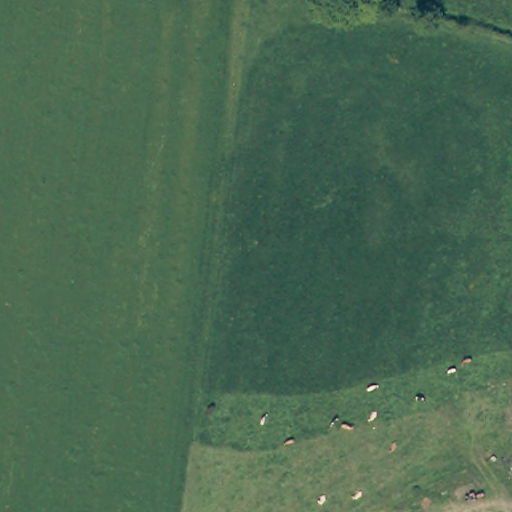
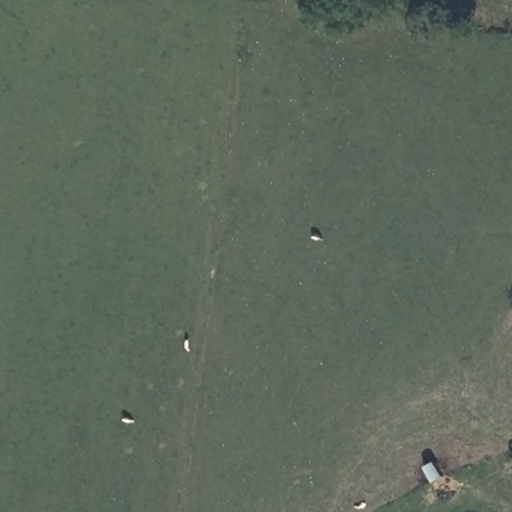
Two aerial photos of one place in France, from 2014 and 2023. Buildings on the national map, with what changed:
[]

